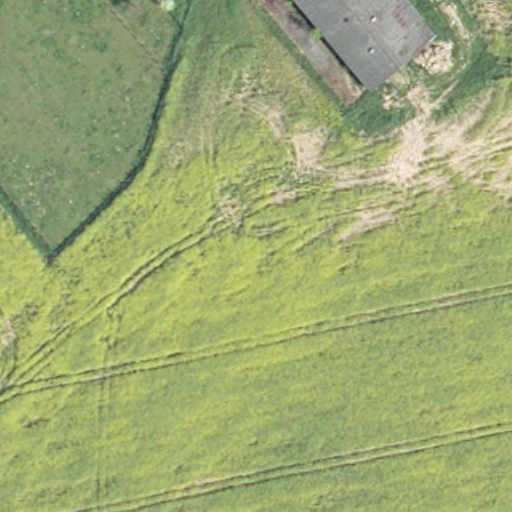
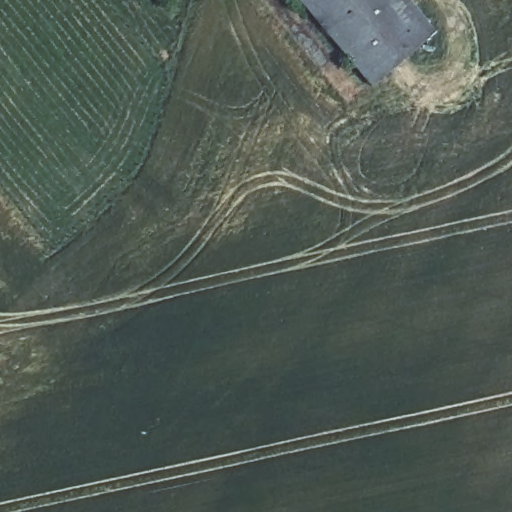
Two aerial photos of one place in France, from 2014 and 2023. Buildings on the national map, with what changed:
unchanged [(375,85),(302,0),(402,0),(433,38),(375,85)]
unchanged [(433,38),(402,0),(413,0),(440,32),(433,38)]

